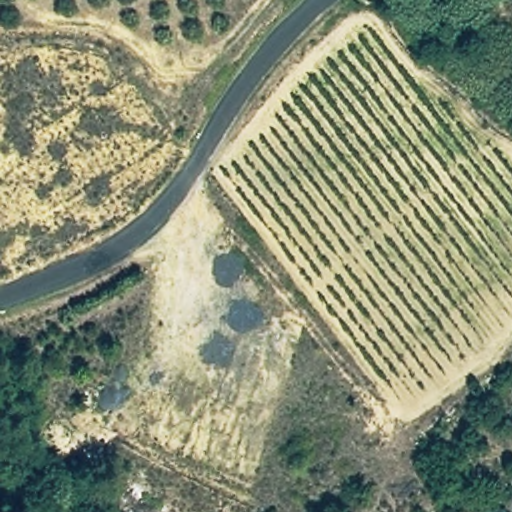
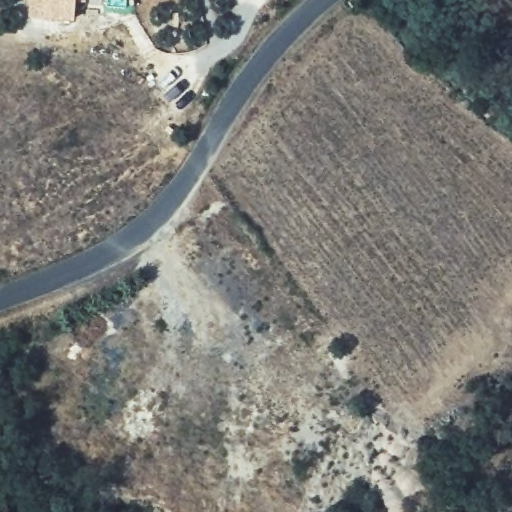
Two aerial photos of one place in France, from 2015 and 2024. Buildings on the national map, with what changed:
new [(30,17),(32,0),(77,0),(75,21),(30,17)]

